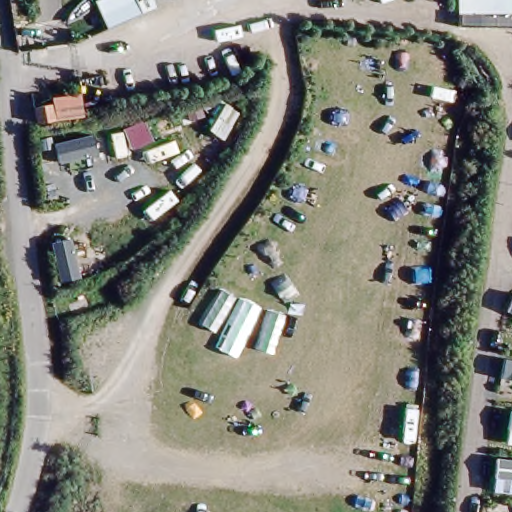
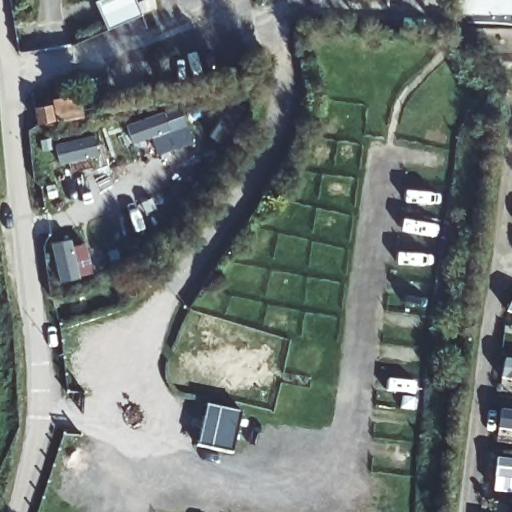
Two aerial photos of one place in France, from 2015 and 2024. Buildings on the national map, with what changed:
unchanged [(458,13),(458,0),(512,0),(512,12),(473,13),(458,13)]
unchanged [(33,128),(32,111),(49,111),(52,126),(33,128)]
new [(205,407),(239,413),(232,452),(198,446),(205,407)]

